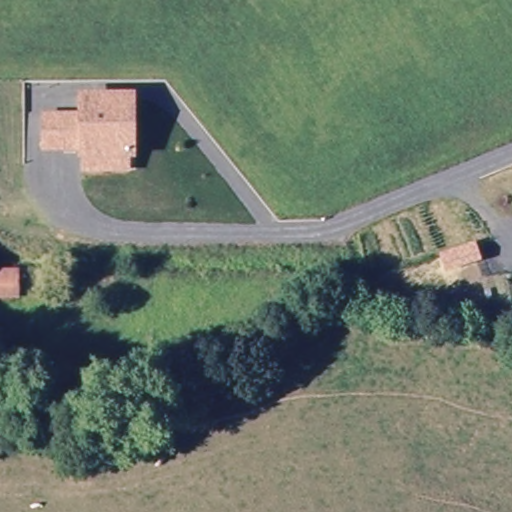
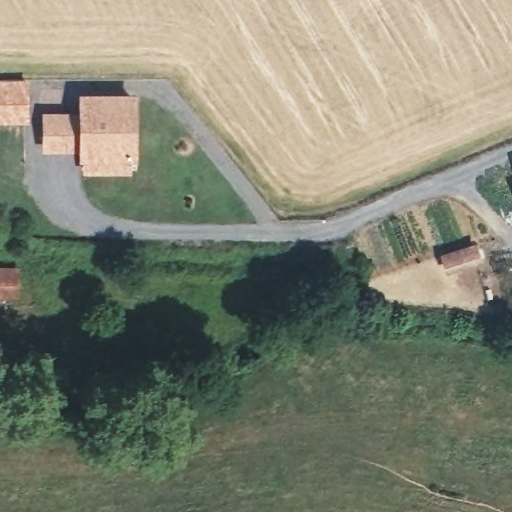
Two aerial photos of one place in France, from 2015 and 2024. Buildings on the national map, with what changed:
new [(27,77),(27,119),(0,121),(0,77),(27,77)]
unchanged [(87,164),(87,149),(84,149),(84,142),(47,142),(47,110),(84,110),(83,91),(131,91),(132,149),(129,149),(129,164),(87,164)]
unchanged [(0,299),(0,276),(14,275),(18,277),(17,298),(14,298),(0,299)]

